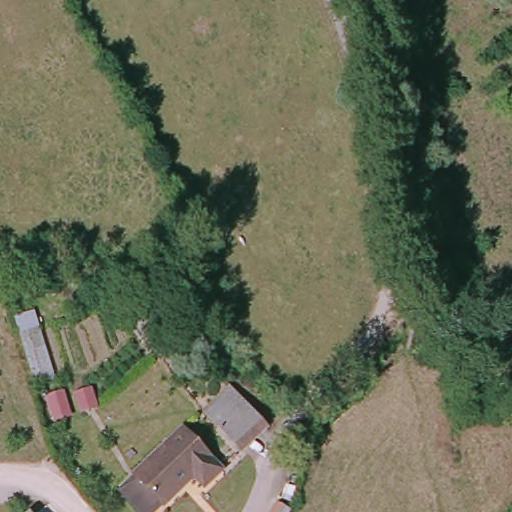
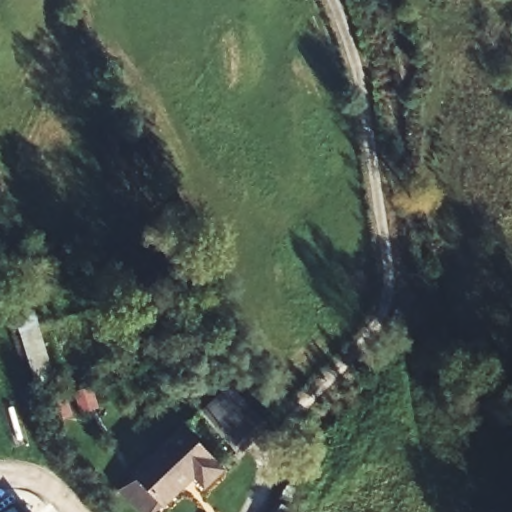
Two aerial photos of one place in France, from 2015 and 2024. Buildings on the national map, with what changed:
unchanged [(17,314),(39,309),(59,378),(36,383),(17,314)]
unchanged [(236,399),(262,423),(240,445),(216,423),(236,399)]
unchanged [(237,470),(221,486),(212,479),(179,512),(151,512),(138,499),(200,436),(237,470)]

